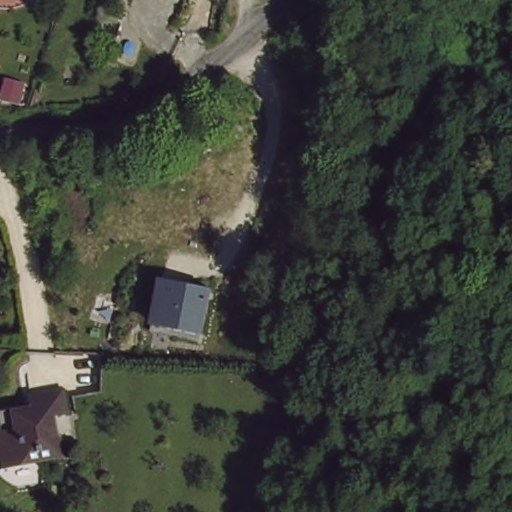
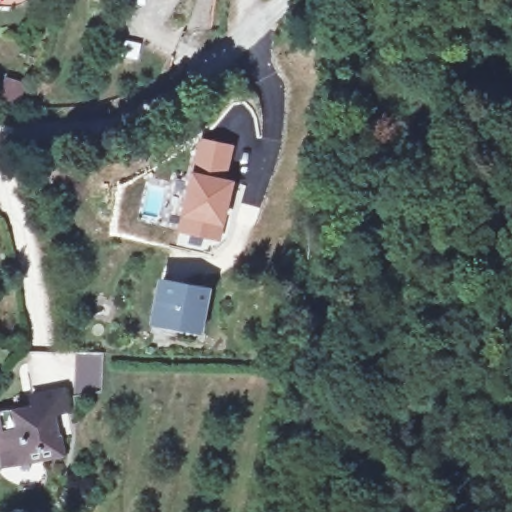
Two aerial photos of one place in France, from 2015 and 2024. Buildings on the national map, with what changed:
unchanged [(431,2),(422,0),(431,0),(431,2)]
new [(197,136),(235,144),(227,177),(190,170),(197,136)]
new [(190,170),(227,177),(235,179),(220,242),(177,234),(190,170)]
unchanged [(213,290),(202,333),(148,322),(160,278),(213,290)]
unchanged [(24,408),(27,417),(34,413),(27,395),(58,382),(67,404),(52,412),(65,447),(10,467),(0,434),(0,416),(24,408)]

